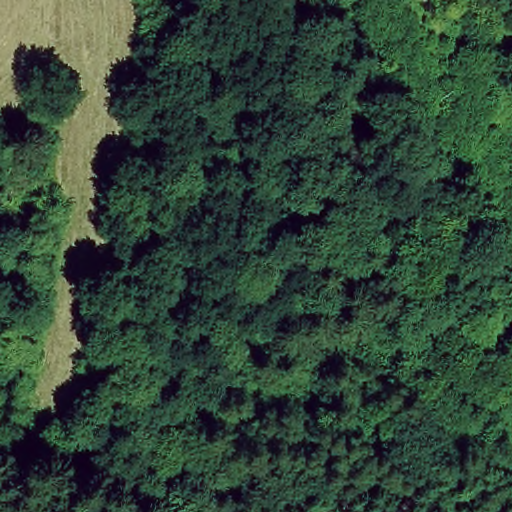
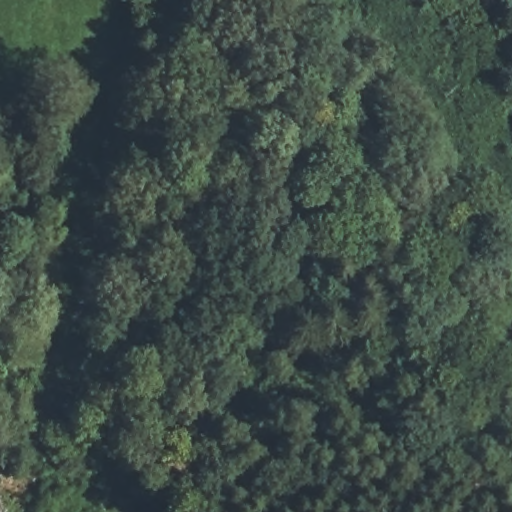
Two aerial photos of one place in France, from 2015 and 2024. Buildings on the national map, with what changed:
[]

